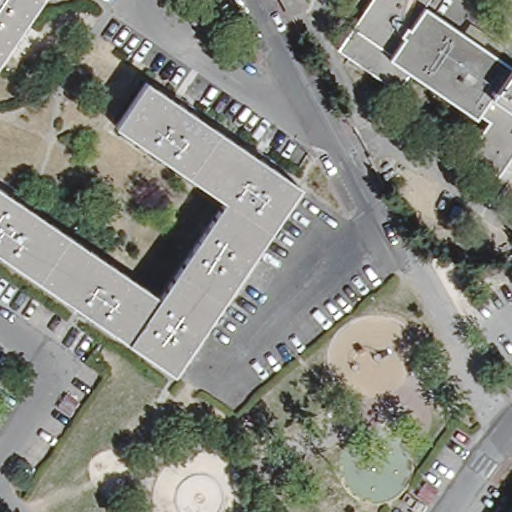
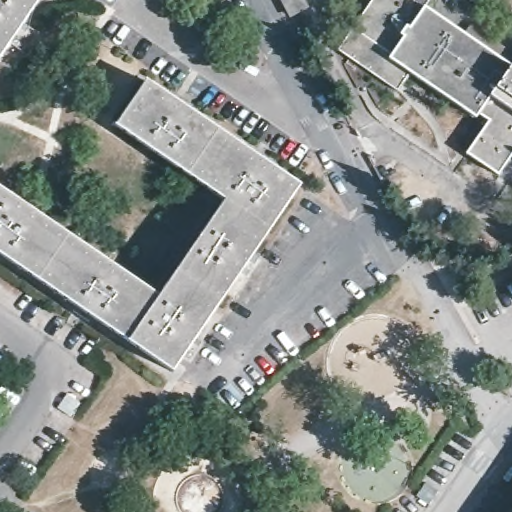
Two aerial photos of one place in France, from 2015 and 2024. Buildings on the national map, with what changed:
unchanged [(0,60),(0,0),(40,0),(0,60)]
unchanged [(291,14),(283,0),(304,0),(307,6),(291,14)]
unchanged [(426,10),(512,70),(512,158),(498,178),(467,157),(489,123),(480,117),(478,120),(412,75),(399,93),(340,52),(375,0),(433,0),(426,10)]
unchanged [(226,200),(116,125),(146,82),(299,186),(174,370),(0,252),(0,188),(159,297),(226,200)]

